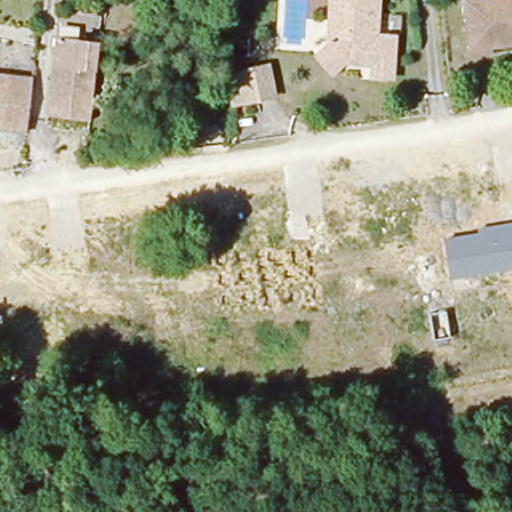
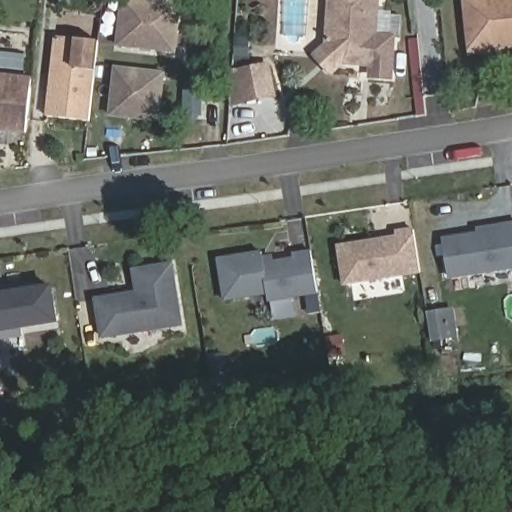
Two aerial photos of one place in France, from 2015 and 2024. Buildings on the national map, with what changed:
new [(115,46),(121,0),(162,0),(182,2),(176,53),(115,46)]
unchanged [(341,62),(329,72),(315,56),(327,46),(331,0),(378,0),(375,37),(394,39),(390,76),(371,75),(371,65),(359,64),(341,62)]
unchanged [(489,51),(471,54),(466,1),(475,0),(512,0),(512,44),(489,46),(489,51)]
unchanged [(48,116),(58,36),(79,39),(99,41),(96,69),(90,121),(48,116)]
new [(160,123),(108,117),(114,66),(166,71),(160,123)]
unchanged [(235,75),(240,74),(270,68),(275,98),(246,104),(233,105),(235,75)]
unchanged [(29,91),(25,134),(0,131),(0,77),(30,81),(29,91)]
unchanged [(512,268),(450,278),(443,239),(479,232),(478,228),(512,222),(512,268)]
new [(422,272),(346,285),(340,247),(399,237),(398,232),(415,230),(422,272)]
new [(269,301),(268,294),(226,301),(219,260),(263,253),(264,262),(296,257),(295,254),(312,251),(319,293),(269,301)]
new [(264,262),(264,258),(272,256),(273,261),(264,262)]
new [(182,325),(103,337),(97,300),(138,293),(135,271),(172,265),(182,325)]
new [(52,288),(58,321),(0,330),(0,297),(52,288)]
new [(430,313),(448,310),(454,310),(459,337),(453,338),(434,341),(430,313)]

